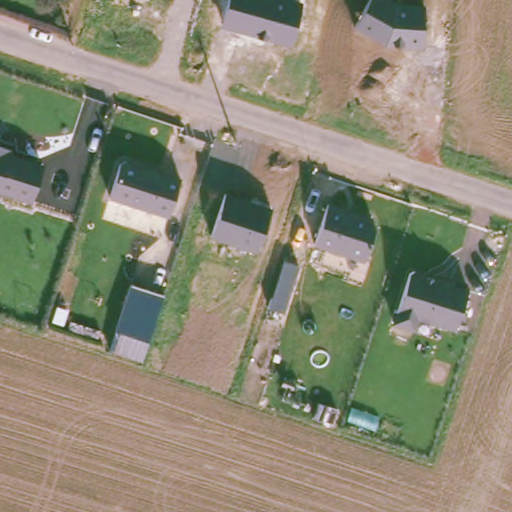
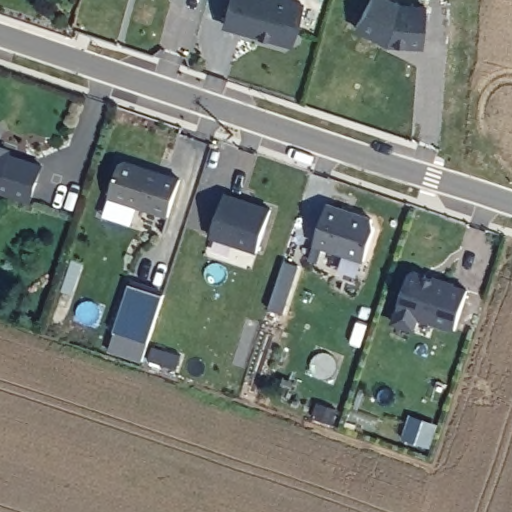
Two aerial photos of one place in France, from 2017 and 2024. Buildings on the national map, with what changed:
unchanged [(221,28),(228,0),(295,0),(303,2),(291,47),(221,28)]
unchanged [(422,48),(384,46),(353,27),(368,0),(390,0),(395,3),(424,5),(422,48)]
unchanged [(44,164),(33,203),(0,192),(0,150),(44,164)]
unchanged [(126,160),(181,177),(169,218),(108,199),(120,163),(126,160)]
unchanged [(225,193),(273,208),(259,254),(211,238),(225,193)]
unchanged [(328,204),(372,218),(376,229),(365,263),(314,246),(328,204)]
unchanged [(409,273),(413,271),(469,288),(456,331),(419,320),(414,331),(392,325),(409,273)]
unchanged [(165,295),(149,342),(143,362),(109,350),(115,330),(130,284),(165,295)]

